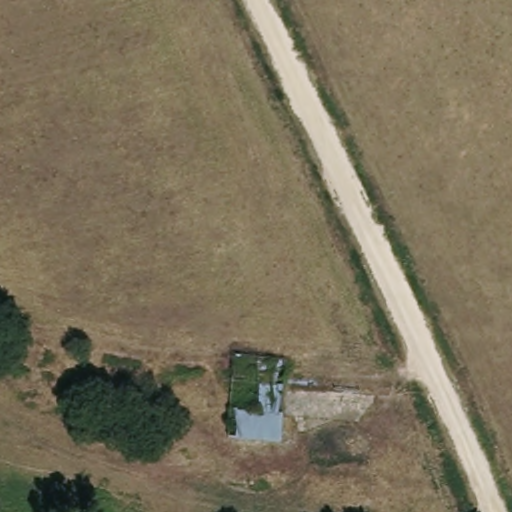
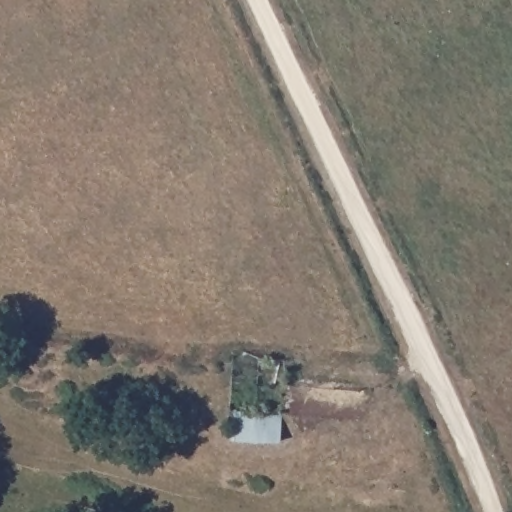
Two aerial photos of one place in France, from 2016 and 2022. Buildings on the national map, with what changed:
unchanged [(280,442),(225,438),(230,383),(284,385),(280,442)]

